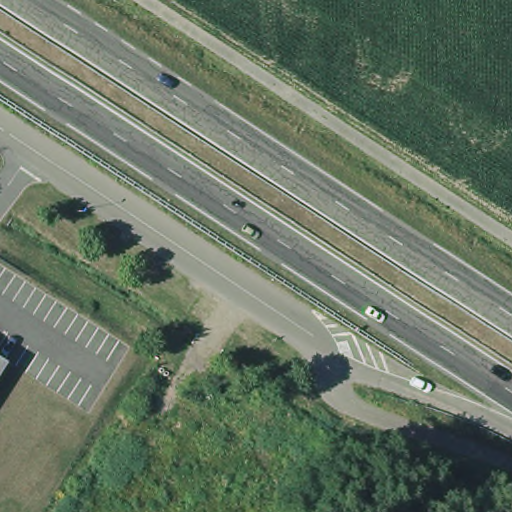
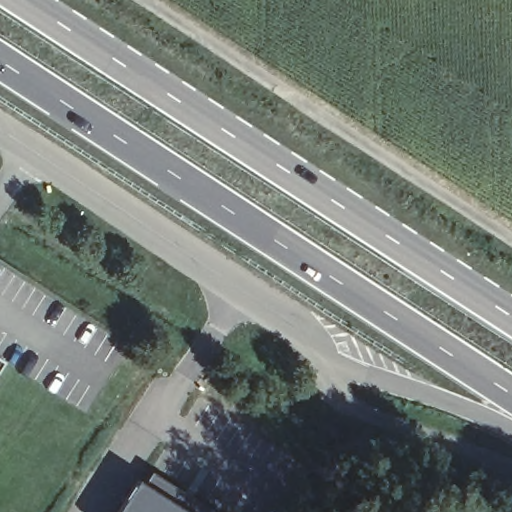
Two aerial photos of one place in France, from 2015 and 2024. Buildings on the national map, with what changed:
unchanged [(0,363),(0,361),(1,362),(0,363)]
new [(215,512),(121,512),(149,467),(215,512)]

